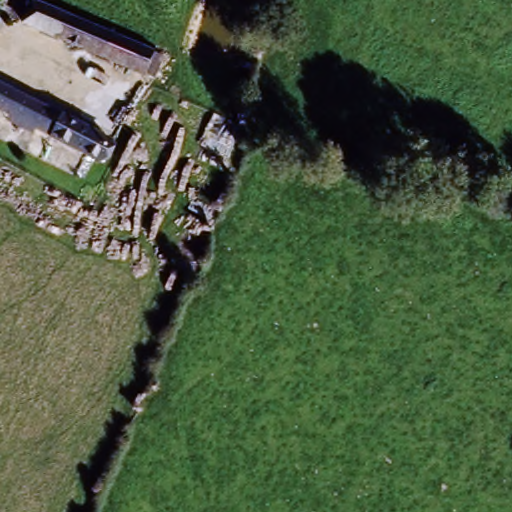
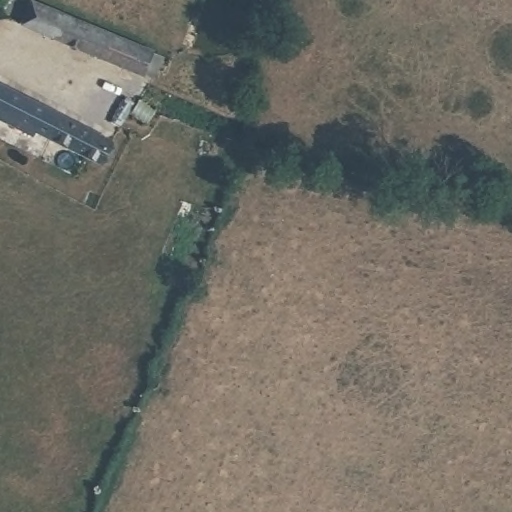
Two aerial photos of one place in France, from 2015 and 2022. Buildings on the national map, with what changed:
unchanged [(152,53),(143,75),(23,23),(32,1),(152,53)]
unchanged [(85,154),(0,111),(0,86),(93,137),(85,154)]

